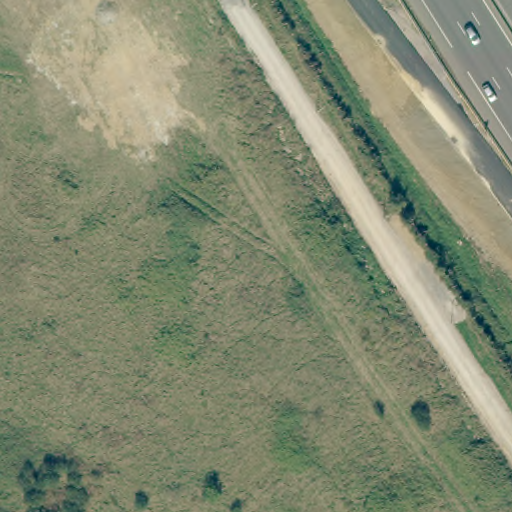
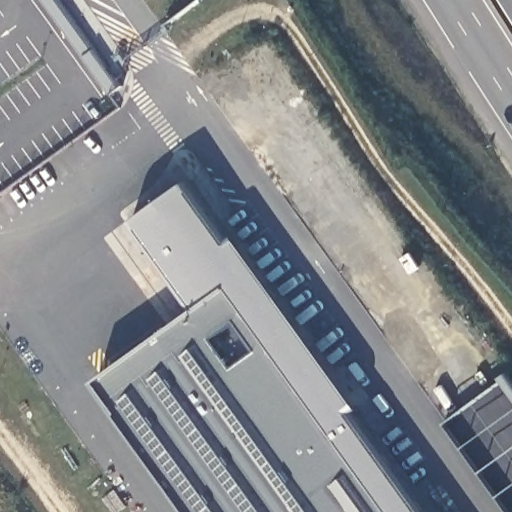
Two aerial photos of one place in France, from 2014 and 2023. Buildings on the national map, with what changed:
new [(230,244),(236,239),(359,409),(352,414),(423,512),(189,512),(97,382),(197,312),(135,223),(189,185),(230,244)]
new [(512,512),(508,512),(446,425),(512,378),(512,512)]

